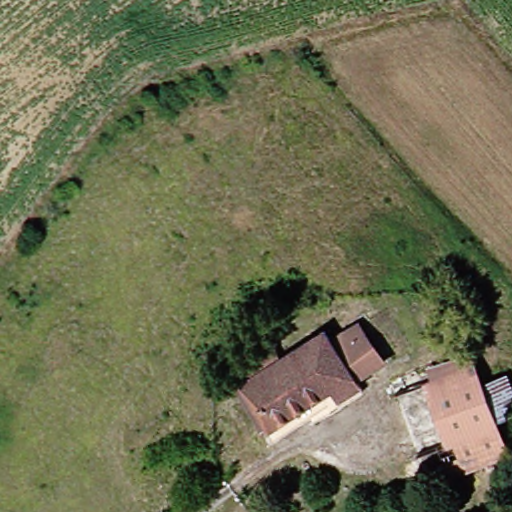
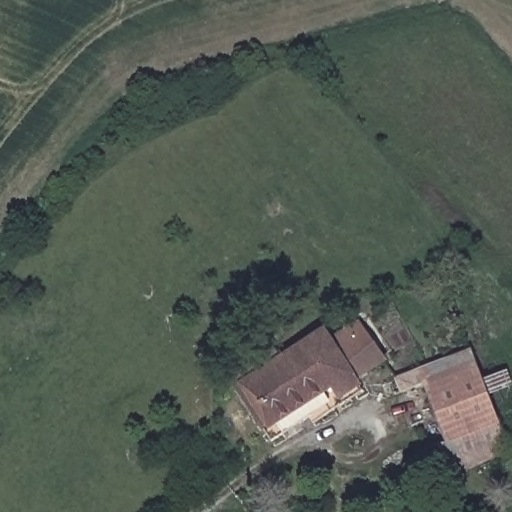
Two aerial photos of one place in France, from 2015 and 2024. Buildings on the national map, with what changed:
unchanged [(268,401),(257,407),(242,380),(277,357),(321,328),(331,343),(363,325),(382,355),(352,376),(355,382),(337,394),(331,385),(278,419),(268,401)]
unchanged [(231,377),(272,350),(277,357),(242,380),(257,407),(268,401),(278,419),(263,428),(231,377)]
unchanged [(386,381),(426,360),(430,367),(423,370),(426,377),(468,361),(500,445),(448,463),(446,456),(416,467),(412,454),(437,445),(418,385),(392,395),(386,381)]

